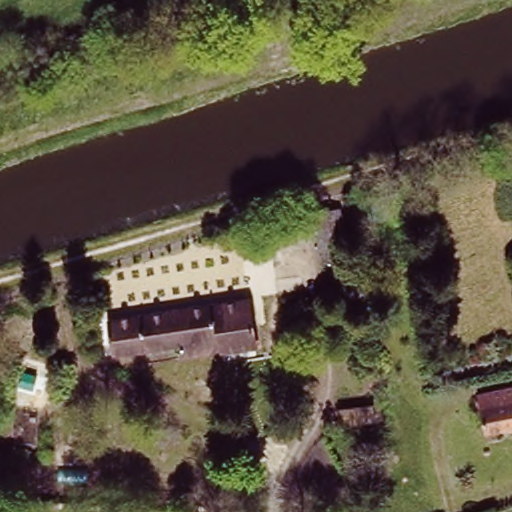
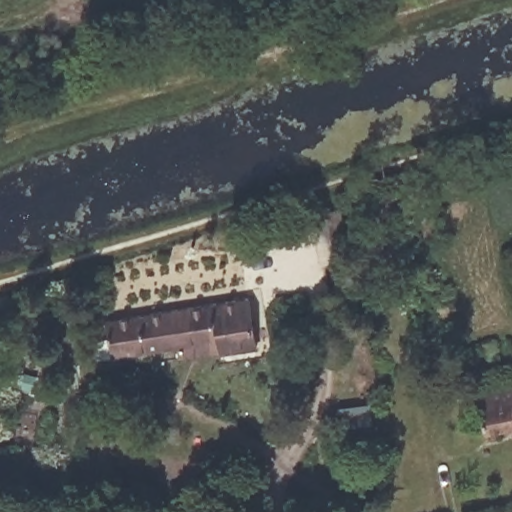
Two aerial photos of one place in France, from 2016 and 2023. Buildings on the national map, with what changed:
unchanged [(107,313),(248,292),(255,342),(145,359),(142,345),(112,349),(107,313)]
unchanged [(512,384),(512,425),(488,430),(480,391),(512,384)]

